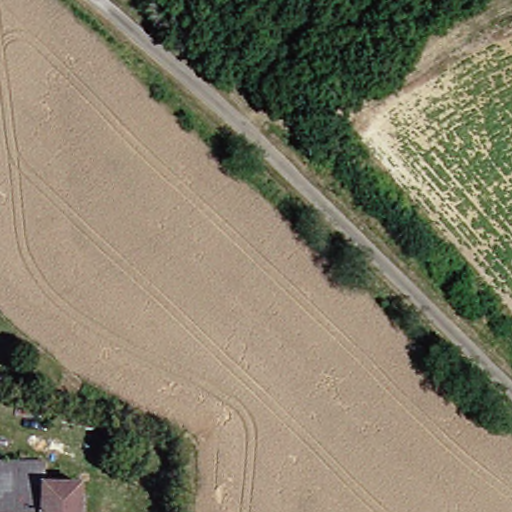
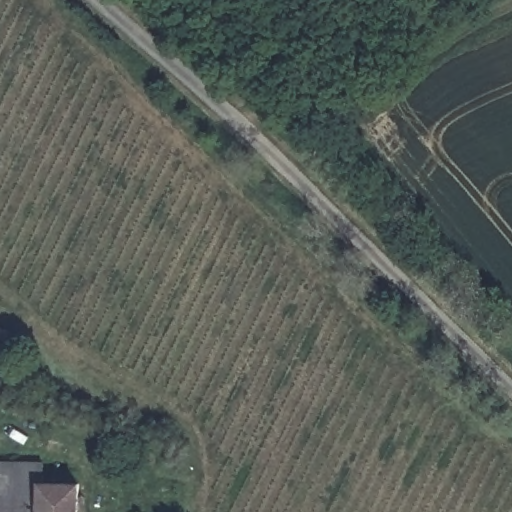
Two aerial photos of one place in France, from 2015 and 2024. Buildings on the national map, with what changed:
unchanged [(43,460),(43,475),(73,477),(74,512),(0,512),(0,460),(43,460)]

